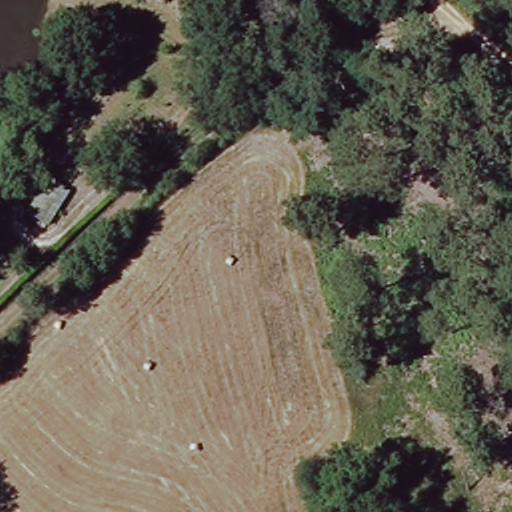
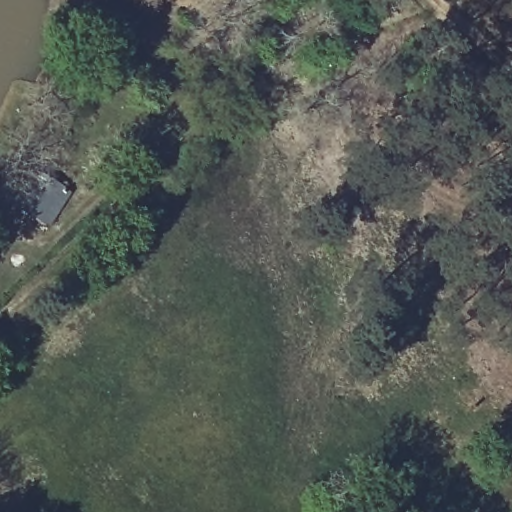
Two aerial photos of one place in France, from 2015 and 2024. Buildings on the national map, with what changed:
unchanged [(75,194),(53,231),(31,218),(52,182),(75,194)]

